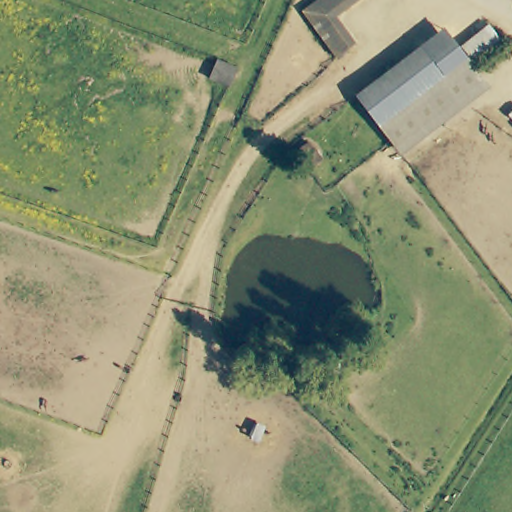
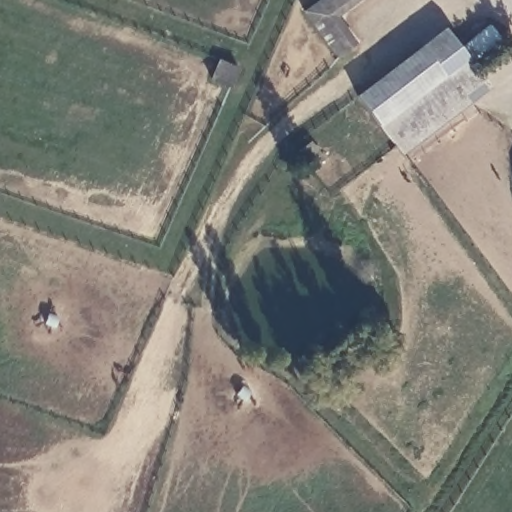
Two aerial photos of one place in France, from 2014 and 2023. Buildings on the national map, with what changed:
unchanged [(355,46),(338,60),(302,13),(319,0),(356,0),(332,18),(355,46)]
unchanged [(449,25),(491,91),(403,158),(357,93),(449,25)]
unchanged [(239,70),(230,87),(212,79),(221,61),(239,70)]
unchanged [(325,161),(312,171),(298,155),(299,154),(311,144),(325,161)]

